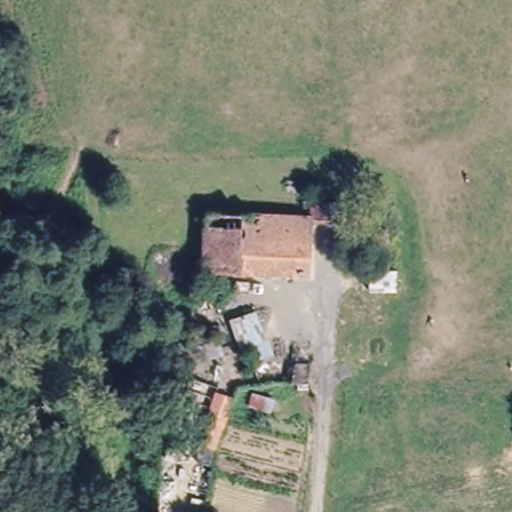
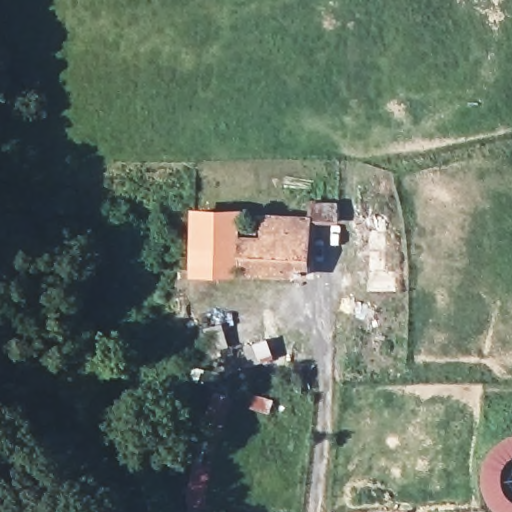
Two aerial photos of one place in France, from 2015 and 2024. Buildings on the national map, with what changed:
unchanged [(310,226),(312,210),(328,211),(340,212),(340,214),(340,230),(310,228),(308,283),(204,277),(205,260),(206,220),(207,221),(310,226)]
unchanged [(236,398),(217,452),(196,443),(215,390),(236,398)]
new [(482,488),(481,478),(482,468),(485,459),(489,451),(496,443),(503,437),(512,434),(512,457),(507,461),(503,467),(503,474),(503,479),(504,488),(506,492),(510,497),(512,499),(512,512),(496,512),(490,506),(485,497),(482,488)]

